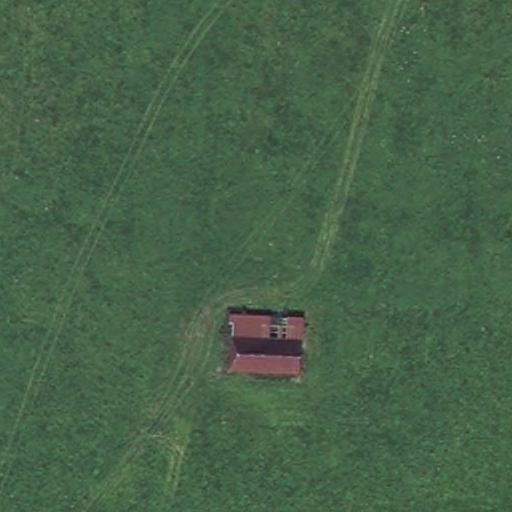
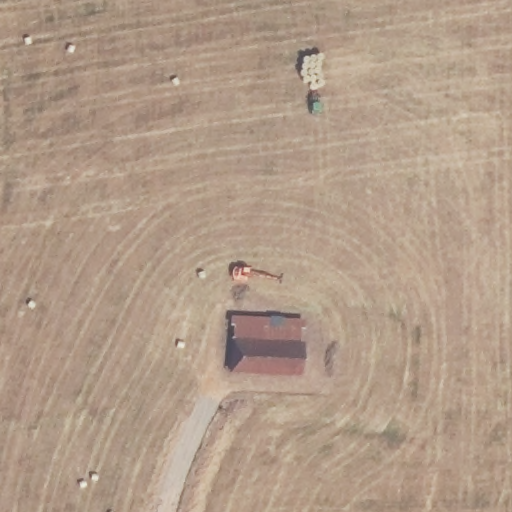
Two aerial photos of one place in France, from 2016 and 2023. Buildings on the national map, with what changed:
unchanged [(232,316),(301,318),(300,335),(231,335),(232,316)]
unchanged [(300,335),(297,373),(230,370),(231,335),(300,335)]

